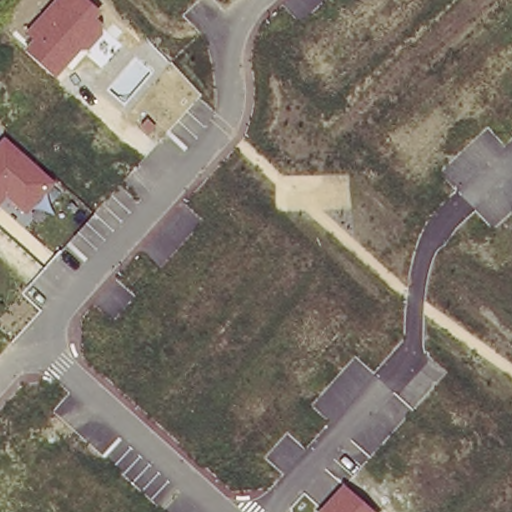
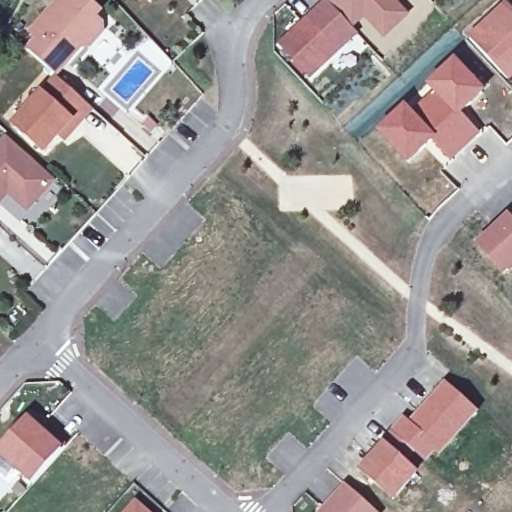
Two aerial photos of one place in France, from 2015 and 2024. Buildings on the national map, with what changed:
unchanged [(92,0),(104,11),(98,17),(104,22),(103,36),(92,50),(85,50),(57,79),(26,51),(37,39),(29,30),(55,0),(92,0)]
new [(311,80),(279,47),(326,0),(359,36),(311,80)]
new [(432,92),(427,86),(456,59),(486,91),(463,114),(481,134),(450,163),(432,144),(437,139),(413,110),(432,92)]
new [(56,139),(41,154),(10,127),(56,80),(92,112),(75,130),(61,144),(56,139)]
new [(408,104),(413,110),(437,139),(432,144),(407,165),(377,132),(408,104)]
unchanged [(7,138),(56,182),(29,214),(7,197),(0,205),(0,146),(7,138)]
new [(507,278),(481,251),(512,222),(512,273),(507,278)]
new [(404,415),(409,420),(445,380),(480,411),(438,457),(435,455),(426,463),(389,433),(404,415)]
new [(45,439),(33,429),(36,426),(48,435),(62,445),(29,481),(0,458),(0,444),(22,420),(45,439)]
new [(385,440),(420,472),(394,501),(359,471),(385,440)]
unchanged [(345,485),(376,512),(319,512),(345,485)]
new [(136,503),(146,512),(128,512),(136,503)]

